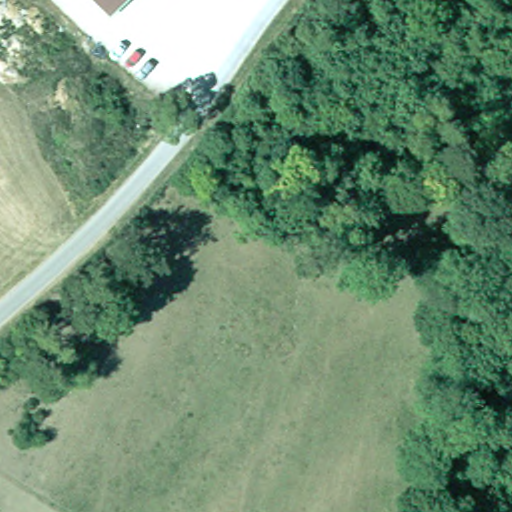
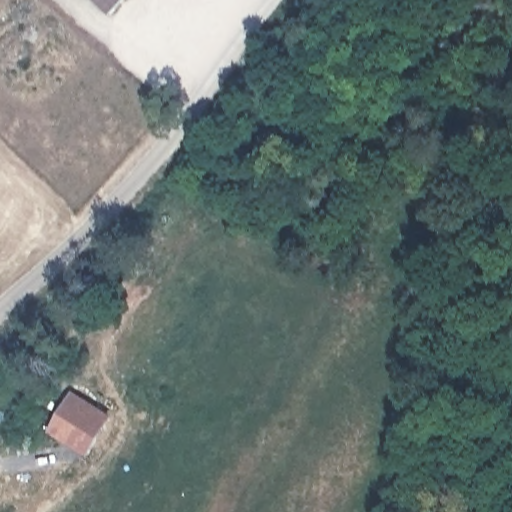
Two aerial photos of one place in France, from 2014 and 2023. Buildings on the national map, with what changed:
unchanged [(97,0),(121,0),(110,12),(97,0)]
new [(114,414),(88,456),(49,431),(73,391),(114,414)]

